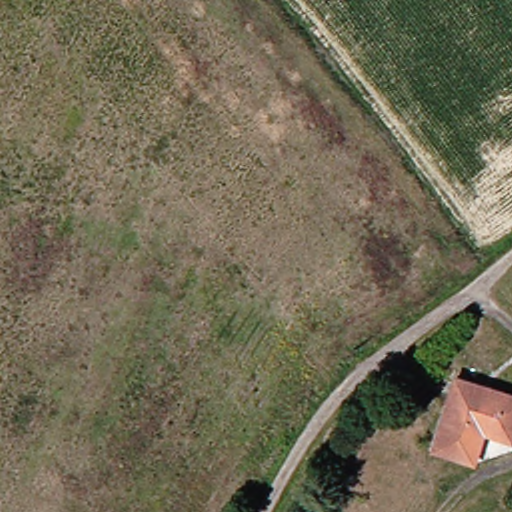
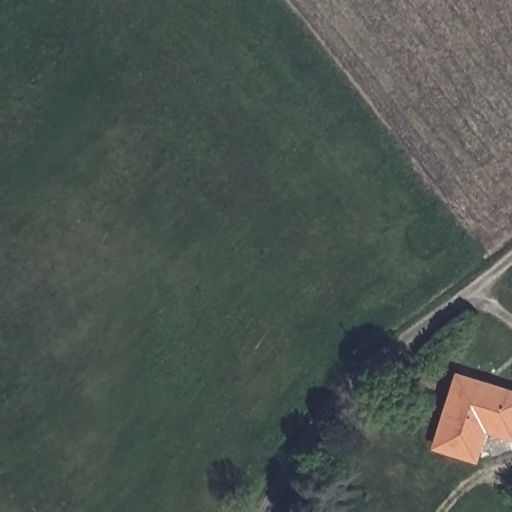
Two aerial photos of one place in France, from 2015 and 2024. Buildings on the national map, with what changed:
unchanged [(454,454),(425,445),(448,371),(512,393),(512,416),(510,421),(507,433),(476,422),(467,452),(465,457),(454,454)]

